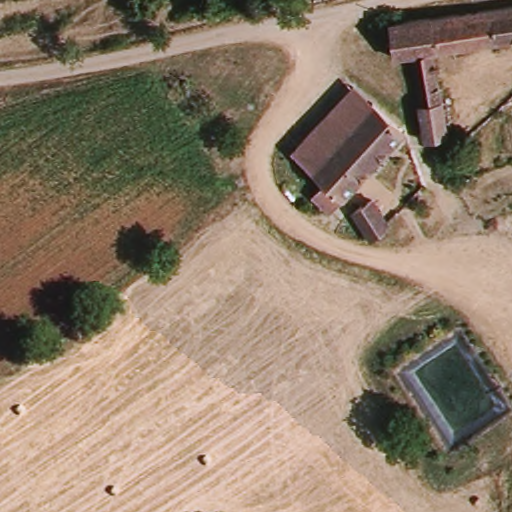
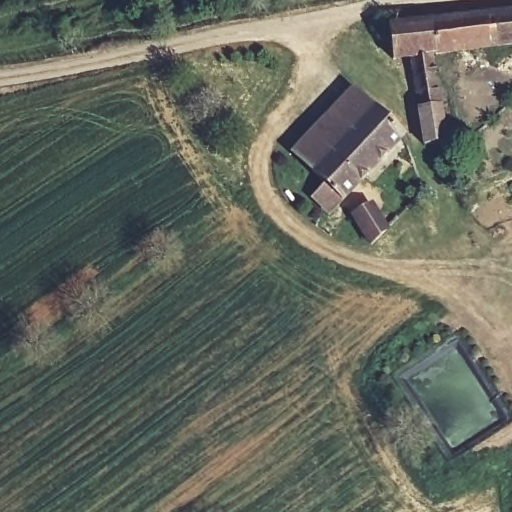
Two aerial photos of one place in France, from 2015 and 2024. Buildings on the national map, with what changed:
unchanged [(424,143),(410,55),(391,57),(388,27),(512,11),(512,46),(435,56),(447,138),(424,143)]
unchanged [(314,168),(294,149),(351,87),(372,106),(314,168)]
unchanged [(402,135),(332,208),(315,192),(327,180),(314,168),(372,106),(402,135)]
unchanged [(392,222),(369,235),(352,207),(375,192),(392,222)]

